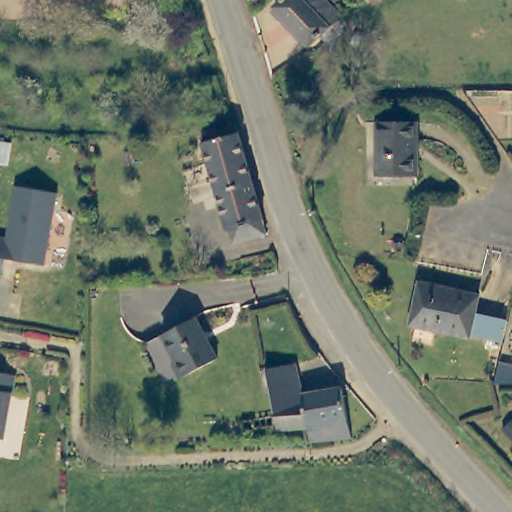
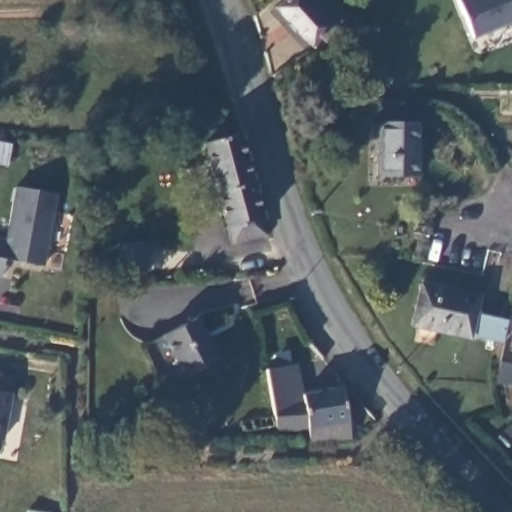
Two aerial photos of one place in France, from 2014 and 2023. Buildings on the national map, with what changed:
unchanged [(342,14),(307,41),(273,3),(277,0),(329,0),(342,14)]
new [(472,39),(455,0),(512,0),(512,23),(472,39)]
unchanged [(206,134),(239,124),(240,125),(266,204),(272,225),(234,234),(229,218),(206,134)]
unchanged [(416,126),(416,178),(377,176),(377,124),(416,126)]
unchanged [(20,185),(60,192),(47,263),(4,256),(1,275),(0,275),(0,237),(10,238),(20,185)]
unchanged [(481,296),(477,314),(508,320),(501,345),(411,326),(420,284),(481,296)]
unchanged [(220,360),(183,376),(162,337),(198,316),(220,360)]
unchanged [(511,360),(512,357),(512,360),(511,360)]
unchanged [(512,366),(512,382),(492,382),(499,362),(512,366)]
unchanged [(310,430),(277,429),(227,434),(227,423),(276,418),(267,369),(305,364),(307,390),(344,386),(347,421),(348,429),(348,438),(310,442),(310,430)]
unchanged [(11,438),(0,437),(0,370),(22,373),(11,438)]
unchanged [(504,428),(512,418),(512,435),(504,428)]

